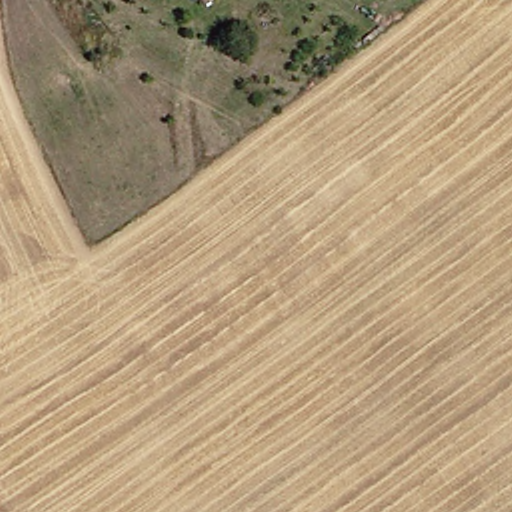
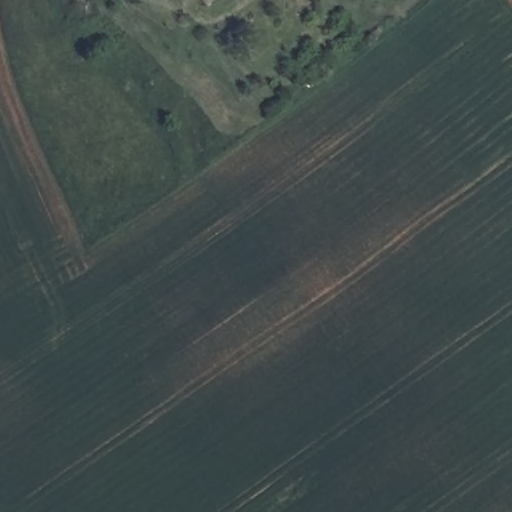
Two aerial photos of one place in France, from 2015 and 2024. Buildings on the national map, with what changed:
unchanged [(219,0),(207,9),(201,0),(219,0)]

